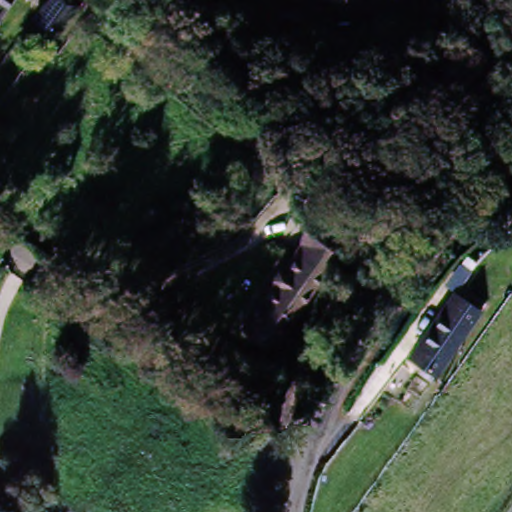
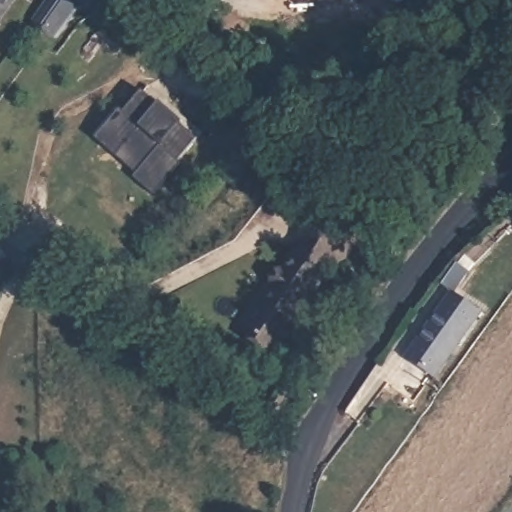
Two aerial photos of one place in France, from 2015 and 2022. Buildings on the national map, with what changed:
unchanged [(18,0),(6,19),(0,15),(0,0),(18,0)]
unchanged [(60,35),(35,19),(48,0),(76,0),(81,3),(60,35)]
unchanged [(6,19),(0,28),(0,15),(6,19)]
new [(183,124),(180,128),(196,141),(180,160),(183,163),(154,197),(134,180),(137,175),(95,140),(123,111),(127,114),(144,92),(183,124)]
unchanged [(297,266),(286,258),(284,252),(285,245),(287,238),(292,231),(300,226),(310,223),(318,224),(325,227),(330,231),(335,236),(338,243),(339,249),(340,254),(337,262),(334,268),(328,273),(324,276),(315,277),(297,266)]
unchanged [(297,266),(315,277),(265,352),(237,332),(286,258),(297,266)]
unchanged [(431,377),(405,361),(436,311),(447,295),(451,297),(472,312),(431,377)]

